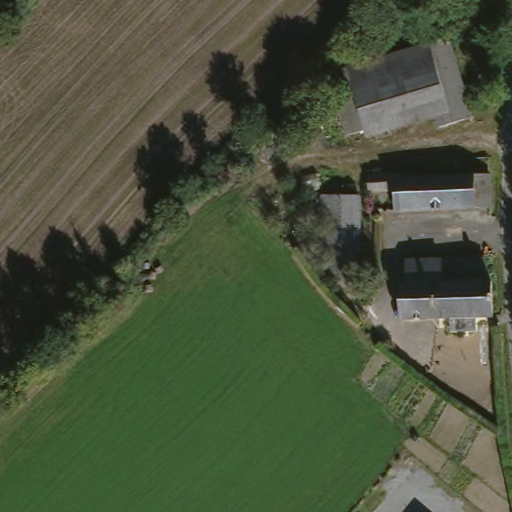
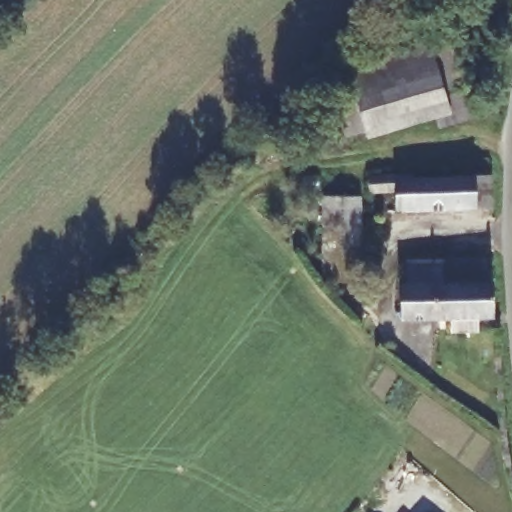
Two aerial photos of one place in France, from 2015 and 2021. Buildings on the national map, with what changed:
unchanged [(459,34),(483,124),(448,133),(441,111),(449,109),(432,41),(459,34)]
unchanged [(449,109),(441,111),(369,129),(368,124),(346,130),(331,67),(432,41),(449,109)]
unchanged [(397,189),(372,190),(371,174),(413,172),(413,160),(434,159),(435,174),(495,171),(495,203),(398,208),(397,189)]
unchanged [(360,283),(323,278),(325,190),(364,193),(360,283)]
unchanged [(493,279),(495,315),(405,319),(403,283),(411,283),(410,258),(489,254),(490,279),(493,279)]

